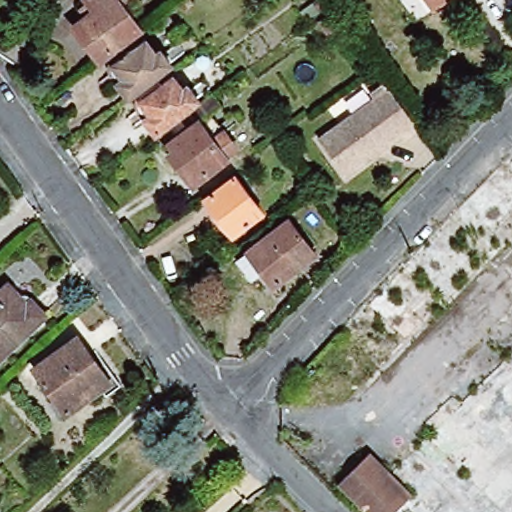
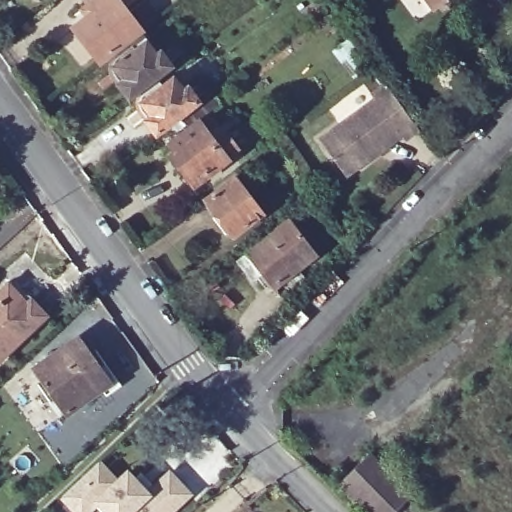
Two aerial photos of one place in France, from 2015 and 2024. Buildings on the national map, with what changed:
unchanged [(76,32),(88,22),(83,15),(91,9),(88,4),(93,0),(112,0),(140,36),(101,65),(76,32)]
unchanged [(422,0),(445,0),(430,10),(422,0)]
unchanged [(130,103),(112,80),(111,70),(115,62),(132,49),(137,55),(148,46),(158,58),(162,55),(174,70),(130,103)]
unchanged [(156,140),(139,116),(137,106),(142,97),(159,84),(163,90),(174,81),(183,94),(188,91),(200,106),(156,140)]
unchanged [(406,142),(402,137),(347,177),(320,140),(376,100),(373,96),(388,85),(420,131),(406,142)]
unchanged [(226,162),(228,165),(194,189),(171,159),(177,155),(172,149),(189,135),(181,125),(213,100),(221,111),(212,119),(238,154),(226,162)]
unchanged [(234,235),(206,200),(235,177),(264,213),(234,235)]
unchanged [(274,288),(246,252),(289,219),(316,255),(274,288)]
unchanged [(0,355),(0,289),(3,285),(21,303),(26,299),(42,315),(0,355)]
unchanged [(108,396),(104,390),(68,414),(35,367),(78,336),(102,370),(109,366),(122,386),(108,396)]
unchanged [(394,512),(369,512),(340,483),(369,453),(410,495),(394,512)]
new [(118,483),(128,473),(134,480),(142,473),(156,487),(170,474),(190,495),(172,512),(108,512),(99,502),(89,512),(76,512),(63,497),(99,463),(118,483)]

